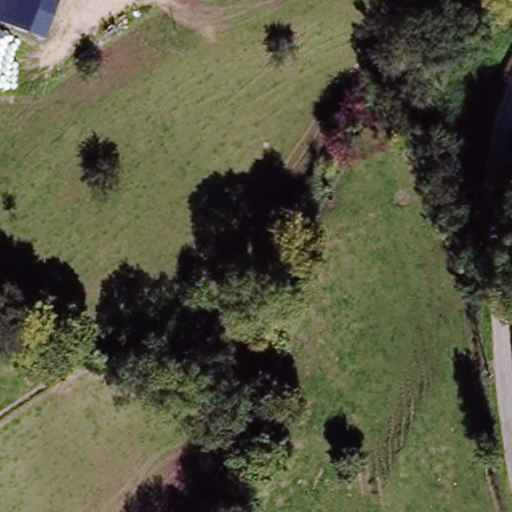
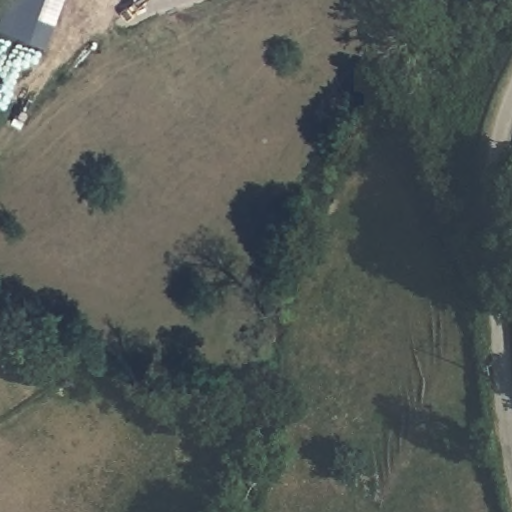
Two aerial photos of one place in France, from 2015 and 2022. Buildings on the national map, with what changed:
unchanged [(0,24),(0,0),(60,0),(43,43),(0,24)]

